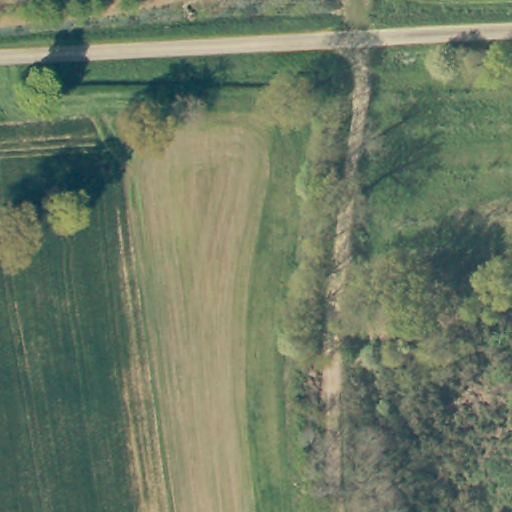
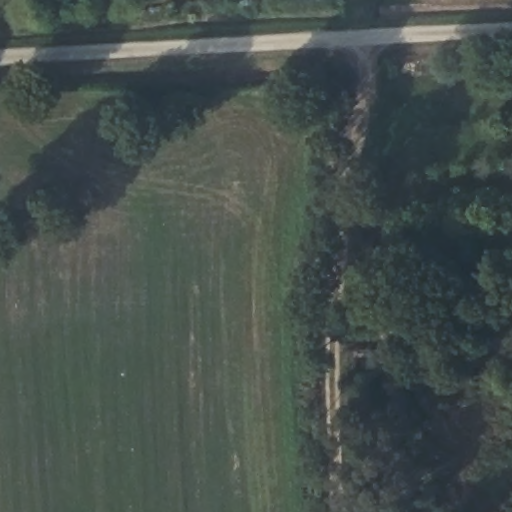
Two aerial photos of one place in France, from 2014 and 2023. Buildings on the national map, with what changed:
[]

